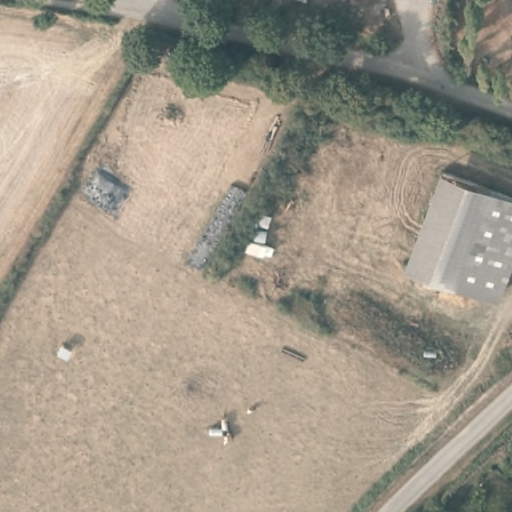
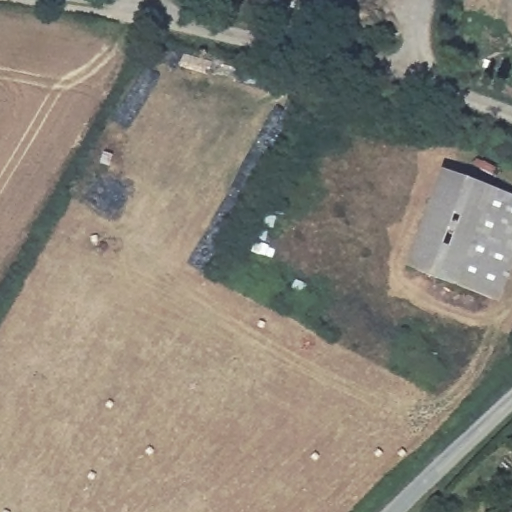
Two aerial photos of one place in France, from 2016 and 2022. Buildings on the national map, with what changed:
unchanged [(446,167),(491,182),(512,189),(512,257),(500,295),(442,277),(411,268),(446,167)]

